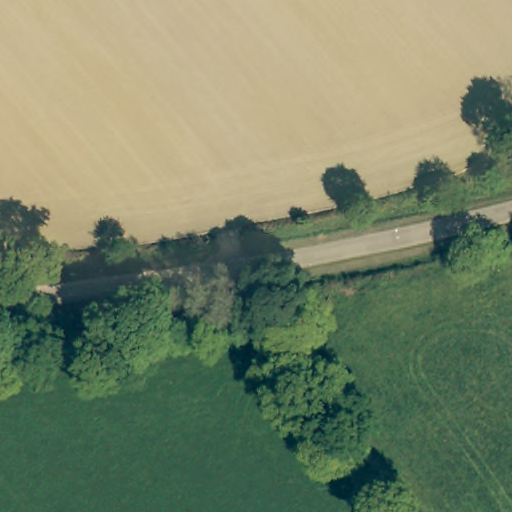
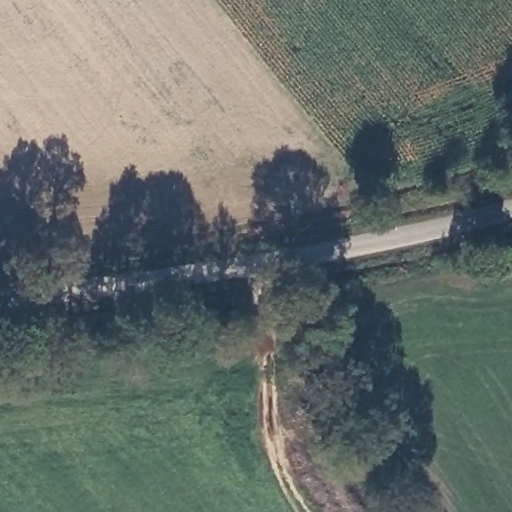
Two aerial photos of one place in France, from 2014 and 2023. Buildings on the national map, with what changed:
[]

